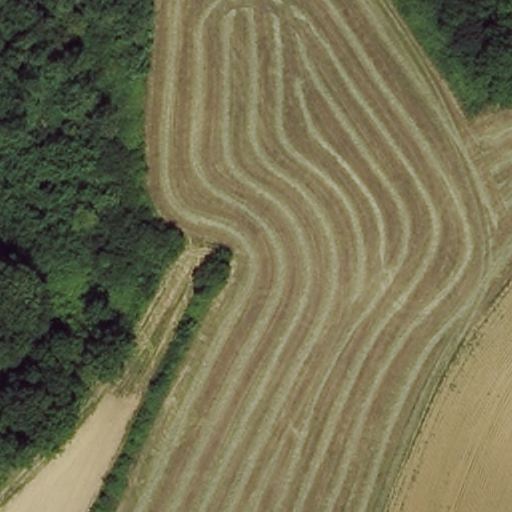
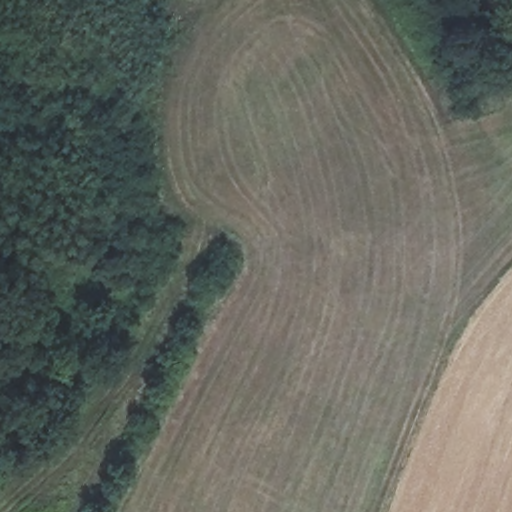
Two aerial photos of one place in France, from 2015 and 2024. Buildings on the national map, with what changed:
[]

